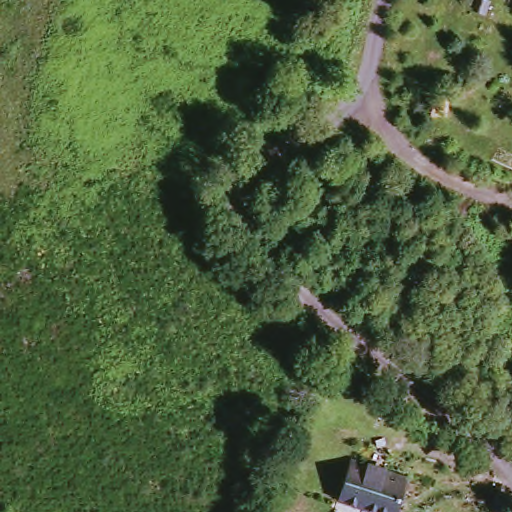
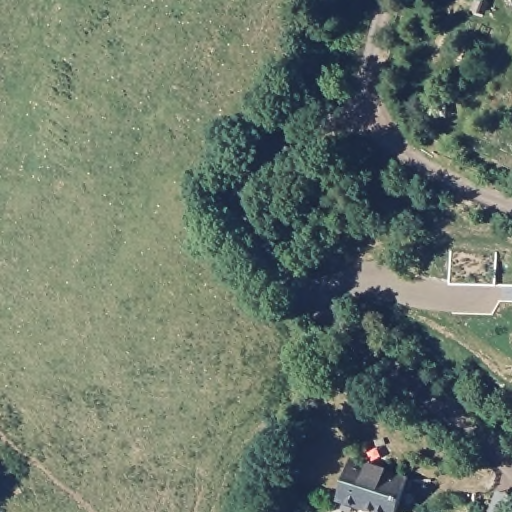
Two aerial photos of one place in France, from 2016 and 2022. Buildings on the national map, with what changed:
new [(450,284),(450,251),(497,252),(496,284),(450,284)]
unchanged [(345,457),(406,473),(396,512),(335,497),(345,457)]

